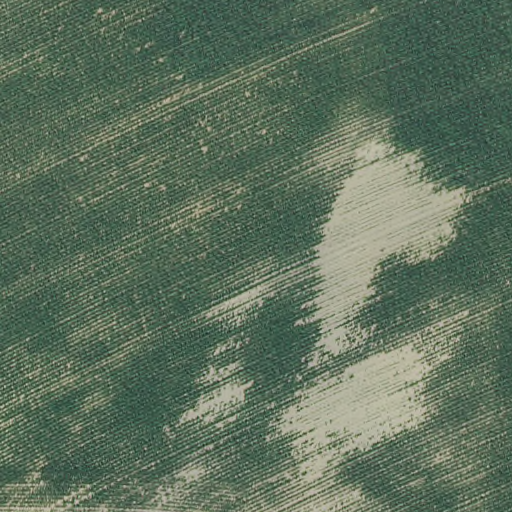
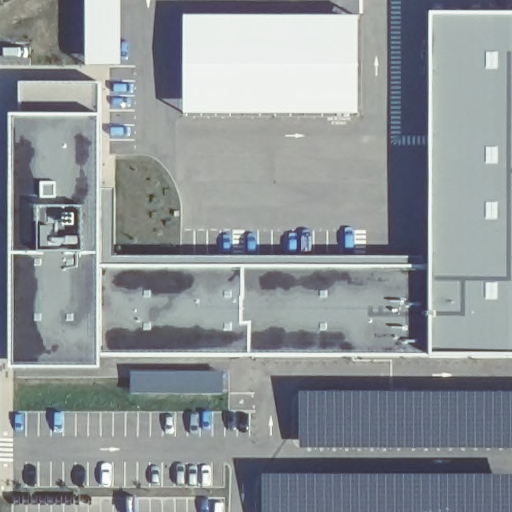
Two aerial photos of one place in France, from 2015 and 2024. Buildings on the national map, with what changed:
new [(118,0),(118,65),(81,65),(83,0),(118,0)]
new [(93,370),(3,370),(4,114),(16,115),(16,81),(95,84),(94,116),(96,190),(111,189),(113,256),(428,256),(427,11),(512,11),(512,358),(95,357),(93,370)]
new [(357,15),(359,114),(179,115),(181,15),(357,15)]
new [(223,394),(131,395),(131,371),(223,371),(223,394)]
new [(512,447),(299,446),(299,391),(512,391),(512,447)]
new [(512,512),(260,512),(259,472),(512,473),(512,512)]

